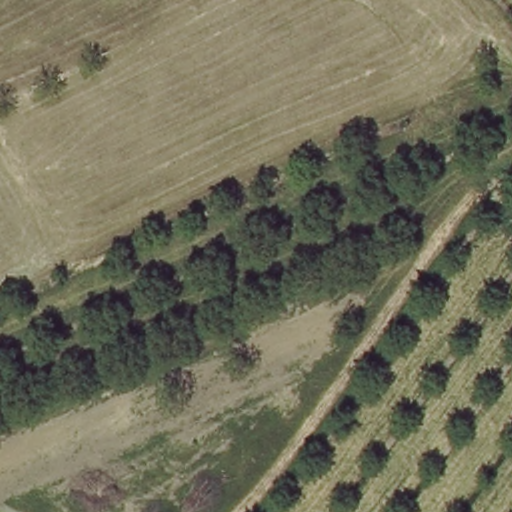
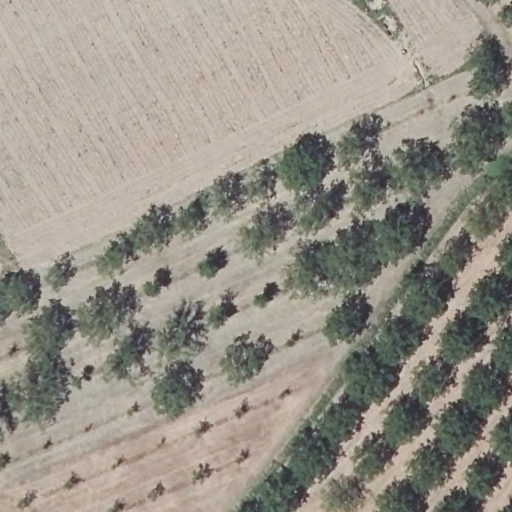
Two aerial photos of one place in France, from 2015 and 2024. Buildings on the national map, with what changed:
[]

